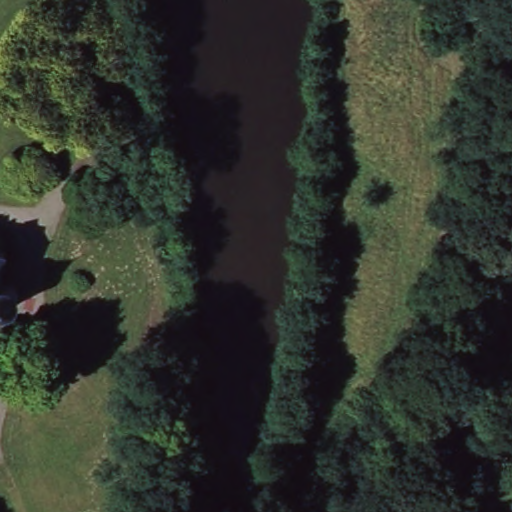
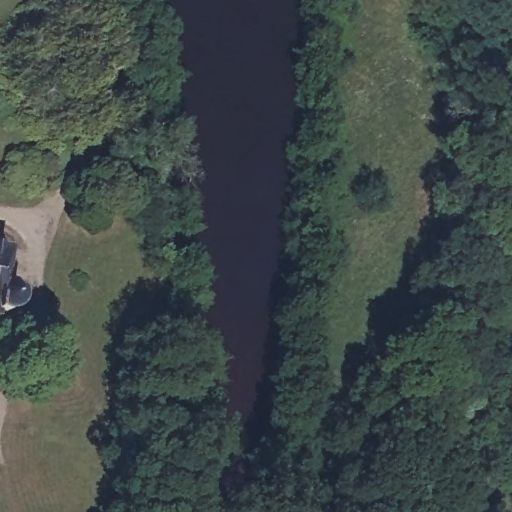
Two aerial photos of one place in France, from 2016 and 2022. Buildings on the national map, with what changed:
unchanged [(11,278),(16,282),(18,287),(17,293),(15,298),(11,301),(7,302),(0,303),(0,302),(0,275),(5,275),(11,278)]

